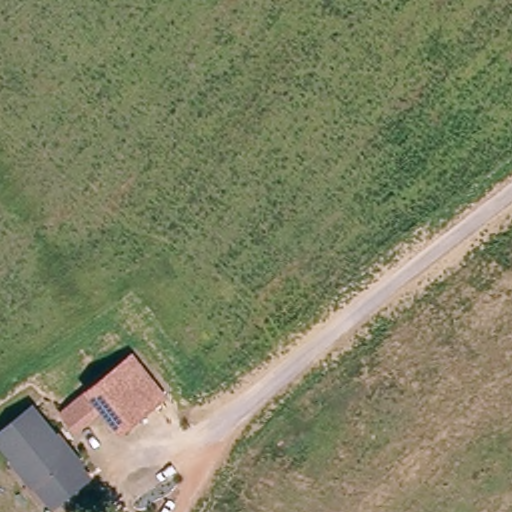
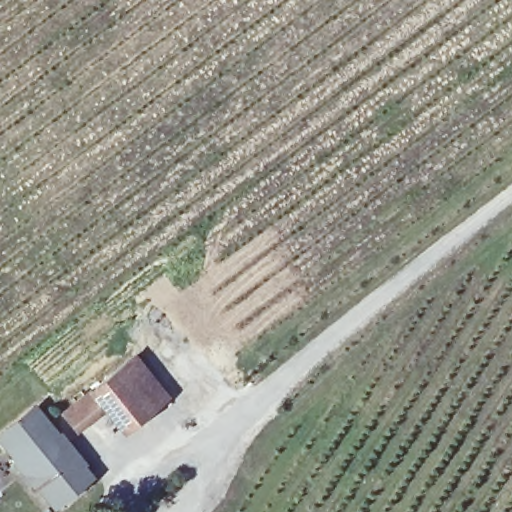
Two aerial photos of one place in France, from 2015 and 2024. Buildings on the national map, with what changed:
unchanged [(136,359),(163,395),(147,407),(142,411),(115,375),(136,359)]
unchanged [(142,411),(122,426),(105,403),(76,425),(74,421),(66,412),(115,375),(142,411)]
unchanged [(80,476),(45,502),(0,443),(0,431),(28,411),(30,408),(37,418),(80,476)]
unchanged [(89,509),(92,512),(86,512),(89,509)]

